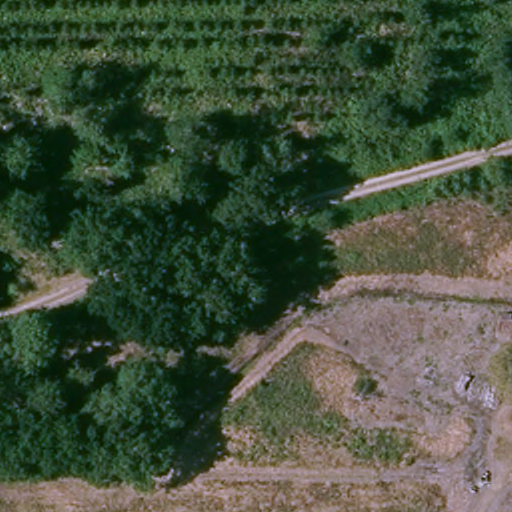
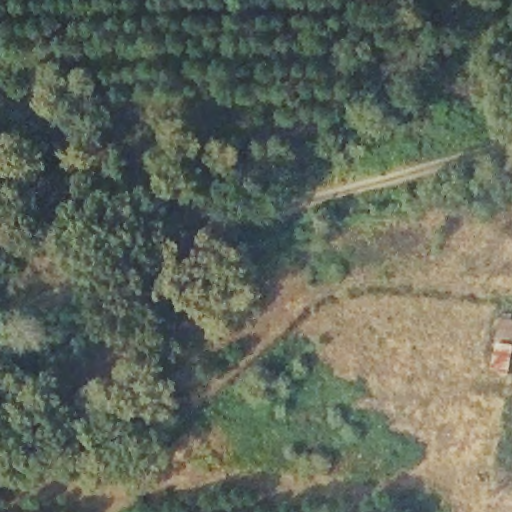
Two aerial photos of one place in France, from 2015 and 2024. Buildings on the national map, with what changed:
unchanged [(502,342),(504,325),(512,326),(512,343),(502,342)]

